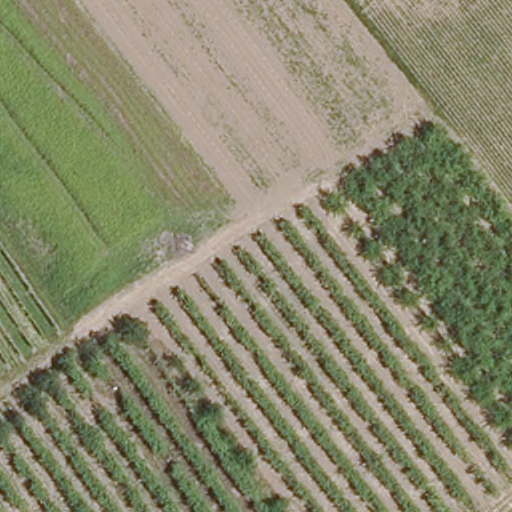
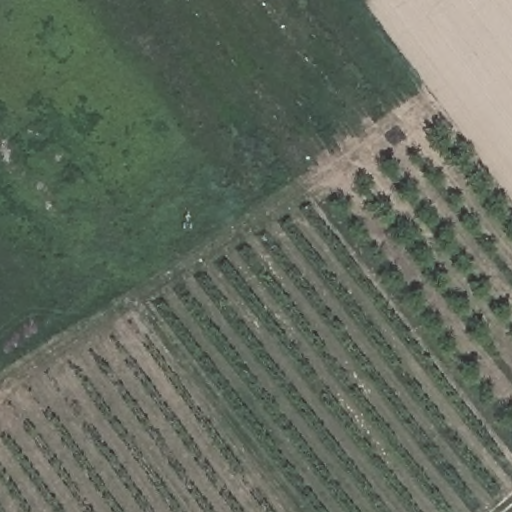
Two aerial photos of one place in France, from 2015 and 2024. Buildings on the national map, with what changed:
[]

